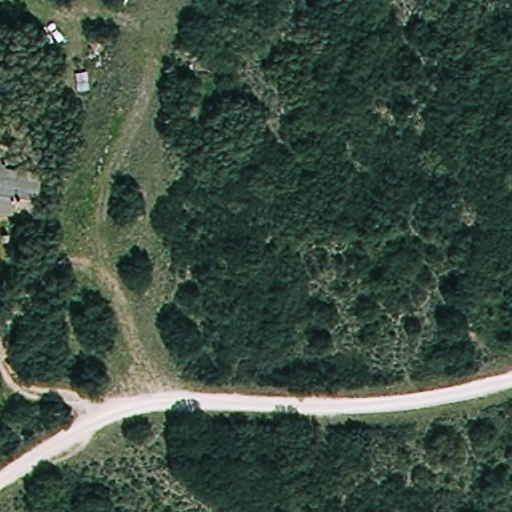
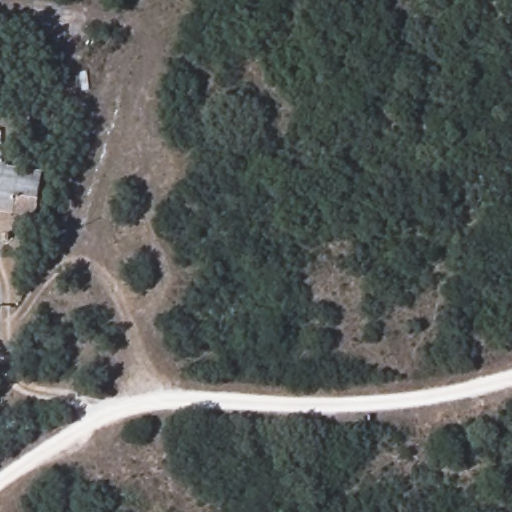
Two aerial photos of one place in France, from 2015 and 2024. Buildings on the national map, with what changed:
unchanged [(17,191),(12,208),(0,205),(0,188),(17,191)]

